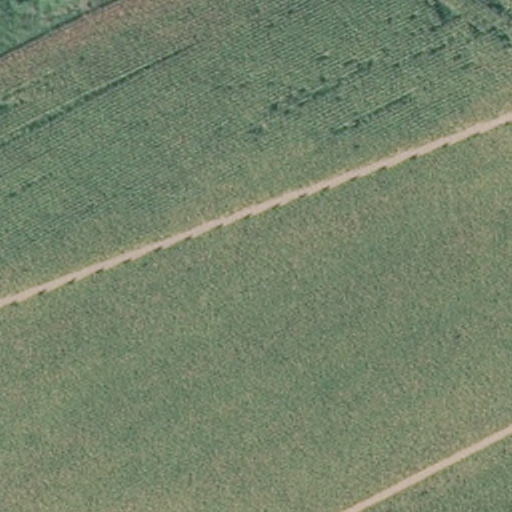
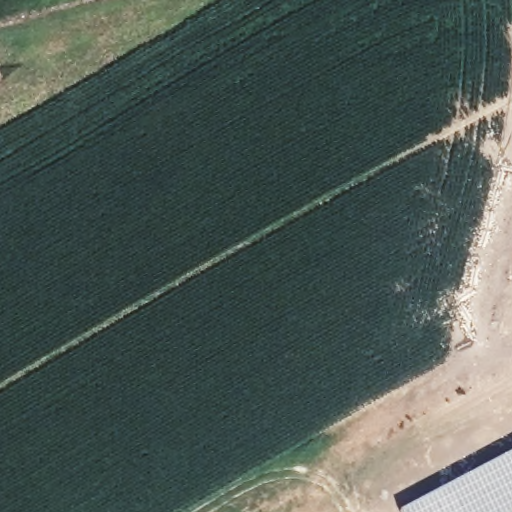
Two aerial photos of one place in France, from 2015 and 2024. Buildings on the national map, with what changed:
new [(512,454),(512,512),(403,512),(512,454)]

